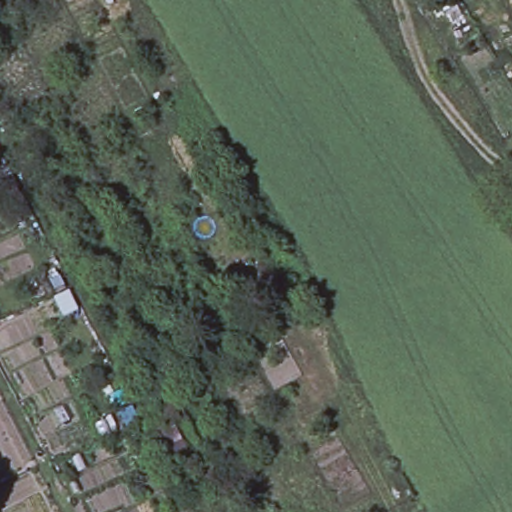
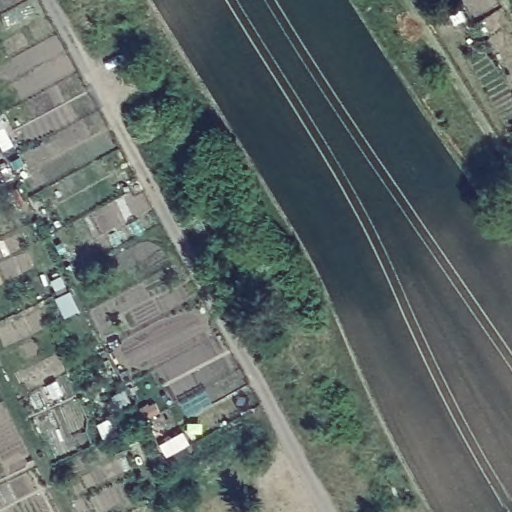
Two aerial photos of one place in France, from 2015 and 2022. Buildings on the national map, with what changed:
unchanged [(51,280),(66,273),(84,309),(70,317),(51,280)]
unchanged [(192,448),(167,462),(144,416),(169,402),(192,448)]

